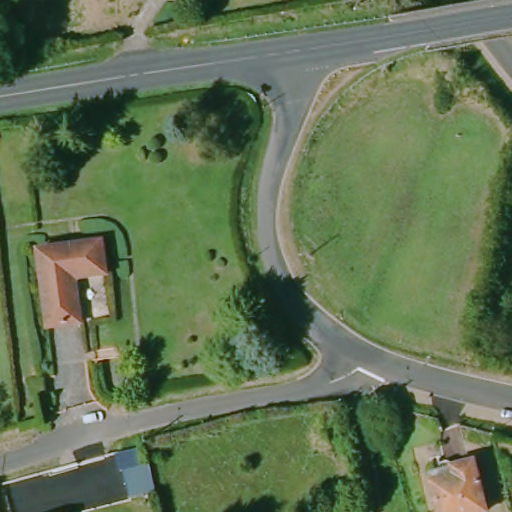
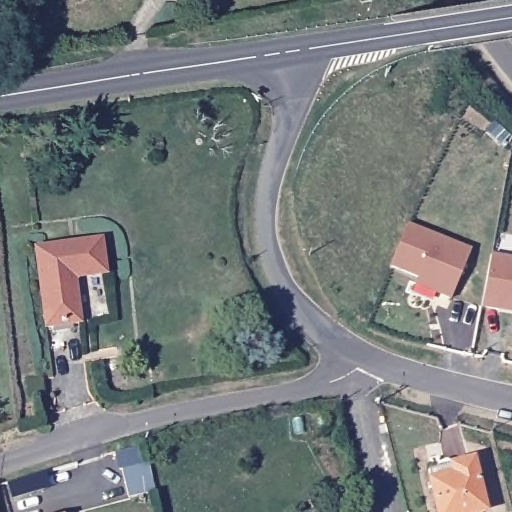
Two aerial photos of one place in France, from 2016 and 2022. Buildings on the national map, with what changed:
unchanged [(20,10),(27,37),(7,42),(0,18),(0,16),(20,10)]
new [(452,300),(415,285),(418,277),(390,267),(409,224),(471,250),(452,300)]
unchanged [(95,242),(97,273),(66,275),(67,321),(35,322),(31,245),(95,242)]
new [(492,255),(512,259),(512,314),(483,309),(492,255)]
unchanged [(424,473),(468,462),(482,511),(480,512),(434,512),(424,473)]
unchanged [(161,493),(135,500),(128,471),(154,465),(161,493)]
unchanged [(500,505),(512,502),(512,512),(501,512),(500,505)]

